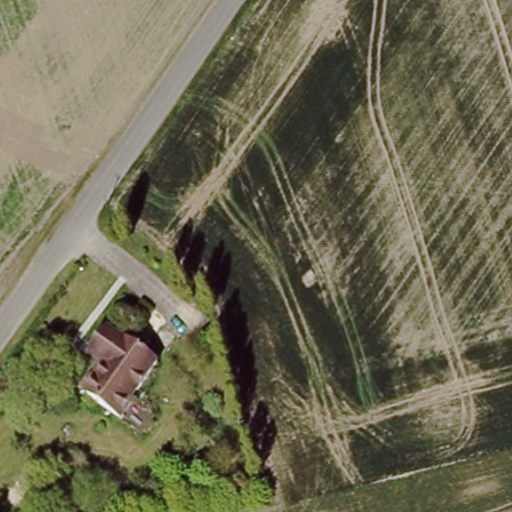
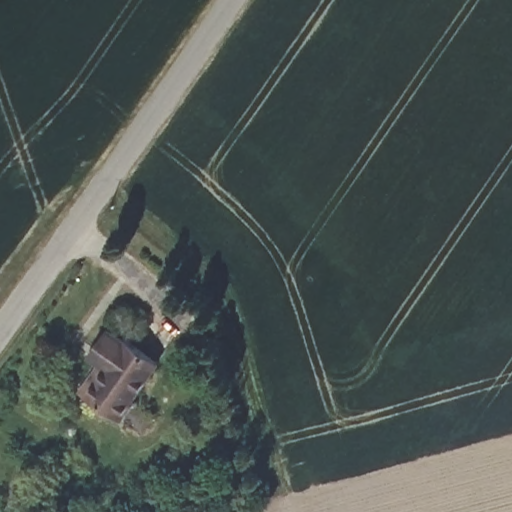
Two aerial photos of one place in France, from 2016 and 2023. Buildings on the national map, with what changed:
unchanged [(126,337),(128,335),(159,360),(138,391),(140,393),(125,415),(92,392),(85,388),(104,360),(91,351),(95,345),(109,325),(126,337)]

